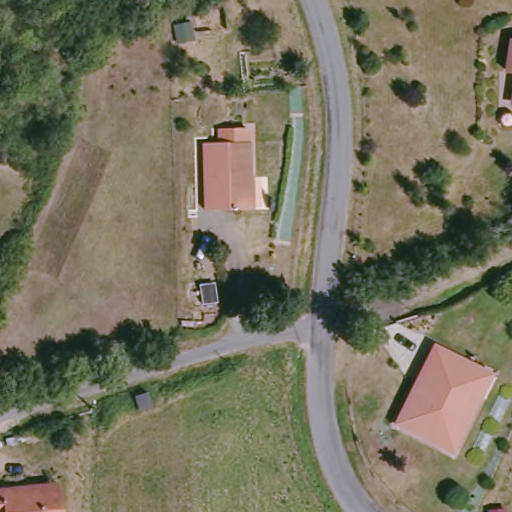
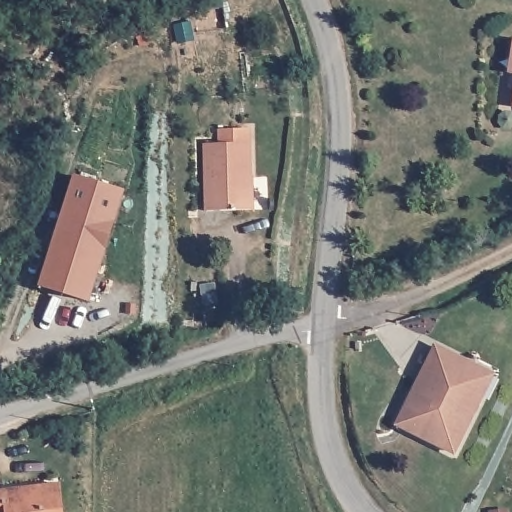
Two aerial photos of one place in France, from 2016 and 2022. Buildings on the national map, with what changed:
unchanged [(174,27),(190,22),(194,39),(178,43),(174,27)]
unchanged [(261,209),(253,210),(214,212),(209,145),(253,142),(255,176),(258,176),(261,209)]
new [(39,286),(73,176),(125,191),(90,302),(39,286)]
unchanged [(225,284),(228,303),(214,306),(211,287),(225,284)]
unchanged [(492,372),(481,396),(454,451),(397,424),(434,346),(475,365),(492,372)]
unchanged [(58,490),(59,512),(0,512),(0,485),(20,484),(58,482),(58,490)]

